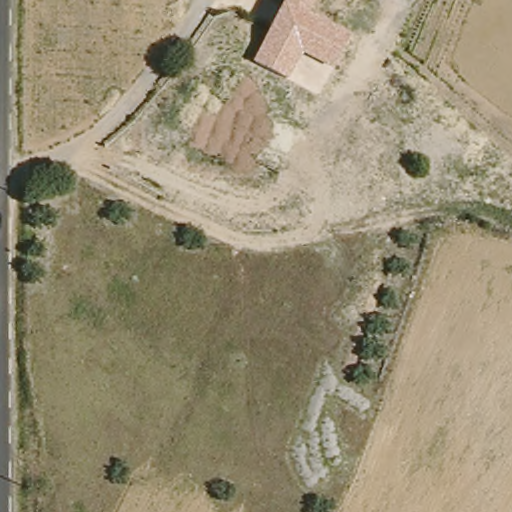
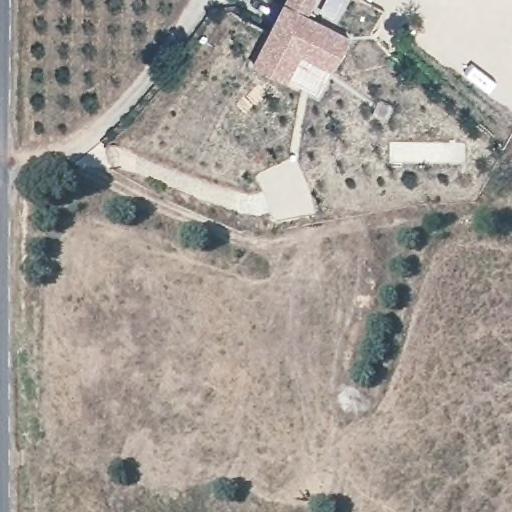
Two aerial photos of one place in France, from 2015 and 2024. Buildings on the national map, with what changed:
unchanged [(352,36),(335,72),(302,57),(288,83),(253,65),(286,0),(316,0),(309,15),(352,36)]

